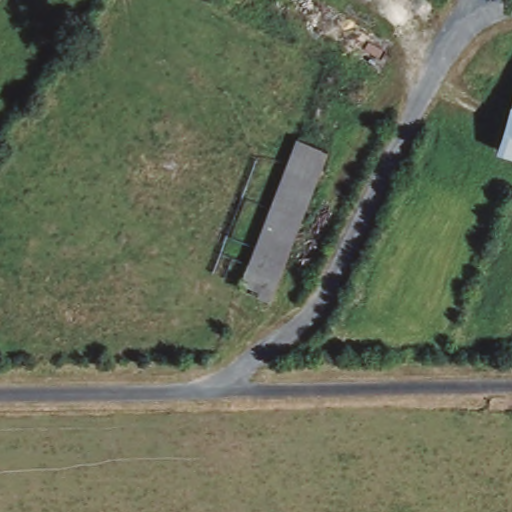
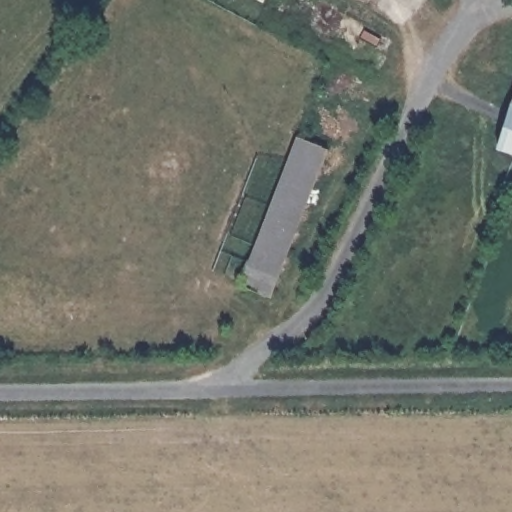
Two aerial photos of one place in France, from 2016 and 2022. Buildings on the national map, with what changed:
unchanged [(512,100),(512,153),(496,148),(512,100)]
unchanged [(296,137),(325,149),(267,302),(240,291),(296,137)]

